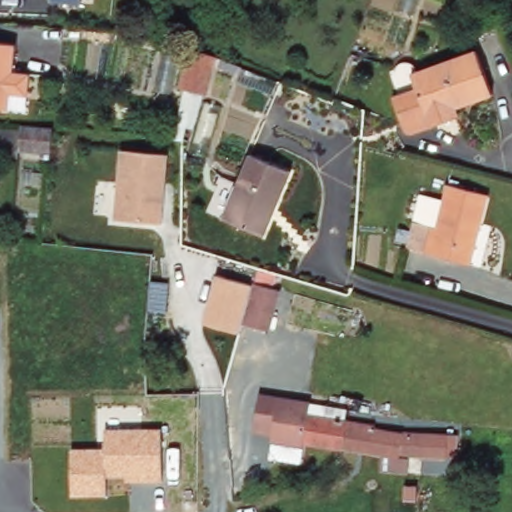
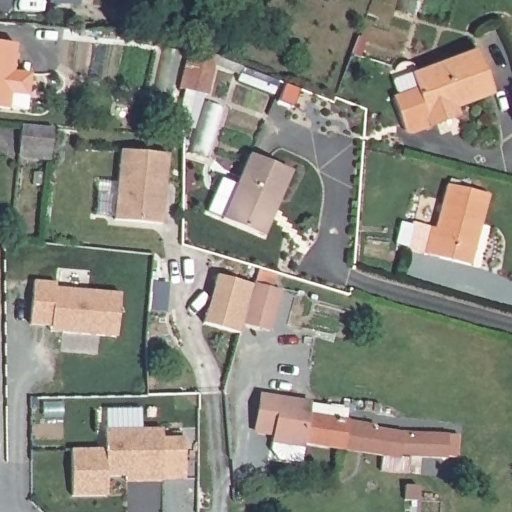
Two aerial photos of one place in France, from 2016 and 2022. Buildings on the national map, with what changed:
unchanged [(13,85),(10,103),(10,109),(0,109),(0,42),(15,43),(13,85)]
unchanged [(182,86),(188,46),(217,52),(209,90),(182,86)]
unchanged [(408,129),(407,127),(406,125),(396,93),(418,85),(414,72),(479,49),(495,91),(457,104),(455,101),(448,104),(453,116),(416,129),(411,130),(408,129)]
unchanged [(24,126),(49,128),(46,152),(15,150),(16,125),(24,126)]
unchanged [(154,138),(156,126),(180,128),(178,137),(178,139),(154,138)]
unchanged [(118,209),(123,169),(125,150),(173,156),(170,173),(165,213),(164,225),(116,219),(118,209)]
unchanged [(259,232),(221,215),(250,151),(293,169),(277,207),(264,235),(259,232)]
unchanged [(432,225),(433,219),(437,220),(448,183),(489,195),(470,265),(408,248),(415,221),(432,225)]
unchanged [(269,328),(243,323),(239,330),(200,320),(216,274),(284,290),(269,328)]
new [(114,336),(50,330),(51,325),(29,322),(34,279),(55,281),(55,285),(119,291),(114,336)]
unchanged [(398,454),(345,447),(274,441),(274,433),(256,430),(262,392),(314,401),(352,409),(353,421),(412,431),(464,435),(459,458),(398,454)]
unchanged [(69,451),(104,449),(104,431),(162,428),(163,481),(126,482),(125,475),(107,476),(108,495),(71,496),(69,451)]
new [(183,437),(184,478),(163,477),(162,437),(183,437)]
unchanged [(404,499),(404,491),(418,491),(417,500),(404,499)]

